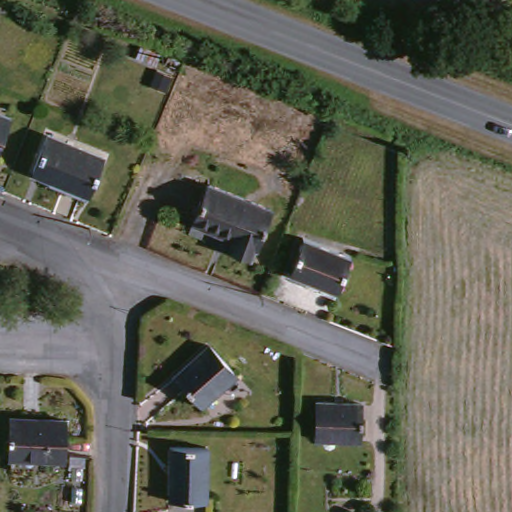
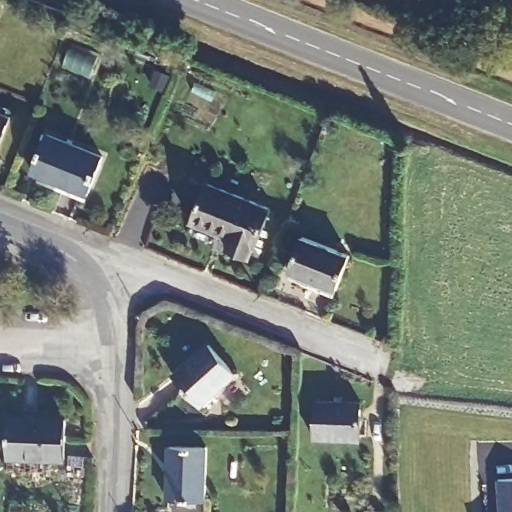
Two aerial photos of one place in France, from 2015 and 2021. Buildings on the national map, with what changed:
unchanged [(14,117),(0,154),(0,112),(14,117)]
unchanged [(98,158),(84,194),(33,174),(46,138),(98,158)]
unchanged [(263,210),(246,255),(220,245),(225,233),(195,221),(208,189),(263,210)]
unchanged [(351,254),(339,285),(299,270),(310,239),(351,254)]
unchanged [(201,347),(230,375),(202,405),(173,376),(201,347)]
unchanged [(356,404),(354,443),(313,440),(315,402),(356,404)]
unchanged [(67,416),(66,457),(11,456),(12,414),(67,416)]
unchanged [(207,444),(207,494),(169,494),(169,444),(207,444)]
new [(512,480),(512,512),(498,512),(496,481),(512,480)]
unchanged [(367,512),(367,505),(391,505),(392,512),(367,512)]

